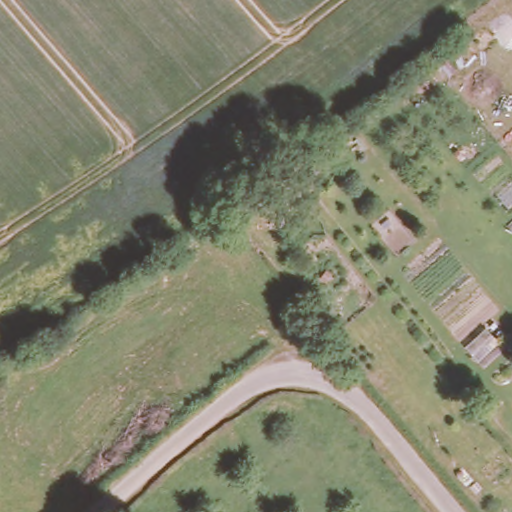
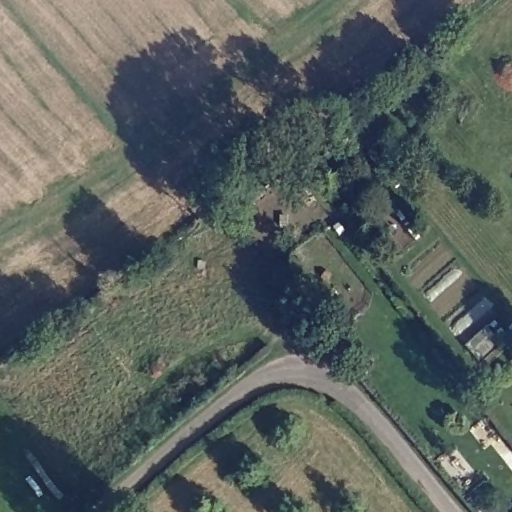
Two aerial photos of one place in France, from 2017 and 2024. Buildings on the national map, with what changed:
unchanged [(512,326),(512,336),(507,331),(512,326)]

